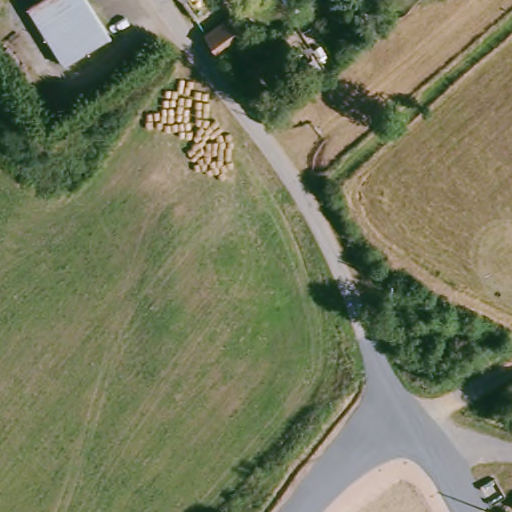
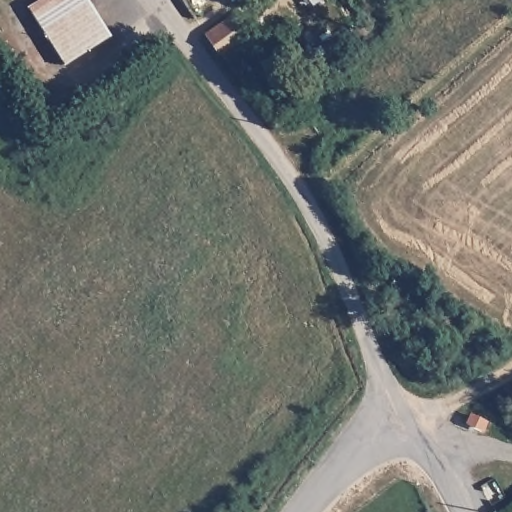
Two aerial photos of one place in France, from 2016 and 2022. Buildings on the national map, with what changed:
unchanged [(35,10),(49,0),(94,0),(119,35),(75,66),(35,10)]
unchanged [(188,0),(192,0),(190,2),(188,0)]
unchanged [(234,20),(248,40),(224,57),(210,35),(234,20)]

